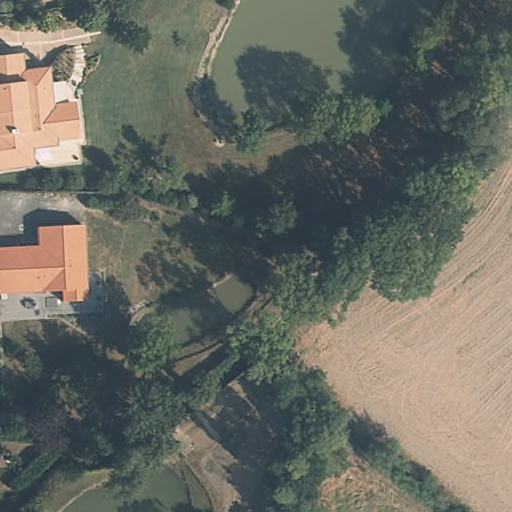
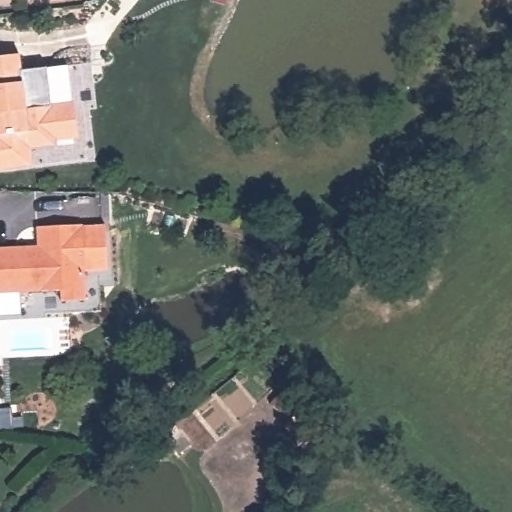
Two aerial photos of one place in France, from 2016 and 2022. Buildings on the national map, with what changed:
unchanged [(14,169),(0,171),(0,58),(24,55),(26,71),(39,70),(52,68),(54,85),(56,107),(77,105),(81,136),(60,139),(61,146),(37,149),(37,156),(39,166),(14,169)]
unchanged [(86,301),(61,303),(60,290),(0,293),(0,248),(37,245),(37,226),(83,225),(86,301)]
unchanged [(338,430),(326,457),(290,428),(297,421),(277,405),(290,390),(338,430)]

